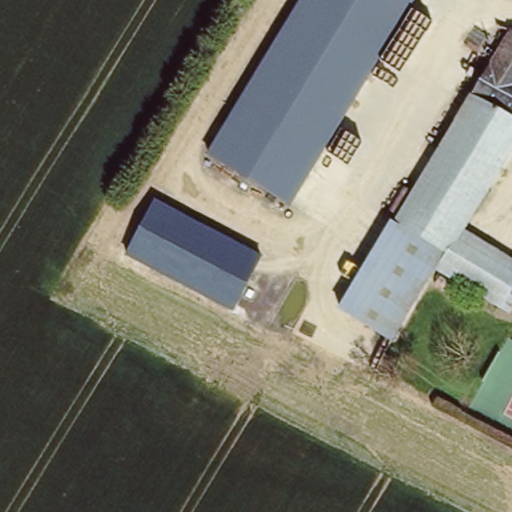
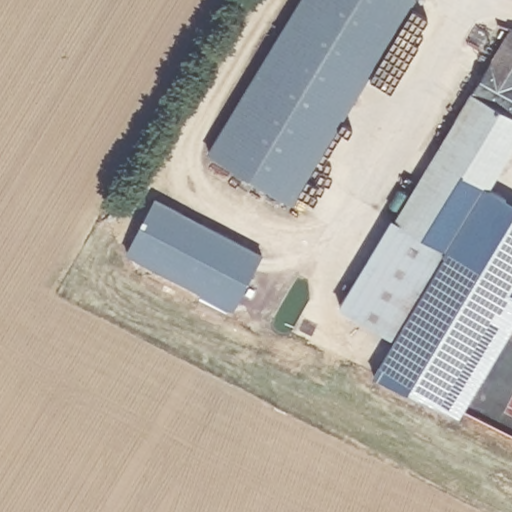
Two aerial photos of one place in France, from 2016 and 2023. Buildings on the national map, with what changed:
unchanged [(298,209),(216,162),(308,0),(414,0),(417,1),(298,209)]
unchanged [(509,27),(512,29),(512,117),(472,93),(509,27)]
unchanged [(512,117),(512,148),(464,229),(449,251),(398,221),(472,93),(512,117)]
new [(371,377),(392,341),(337,308),(391,218),(397,222),(348,309),(352,312),(397,338),(438,269),(449,251),(464,229),(488,189),(512,204),(512,326),(457,418),(371,377)]
unchanged [(261,248),(234,302),(126,248),(152,195),(261,248)]
unchanged [(348,309),(398,221),(449,251),(438,269),(397,338),(352,312),(348,309)]
demolished [(438,269),(449,251),(464,229),(512,258),(512,294),(504,307),(438,269)]

